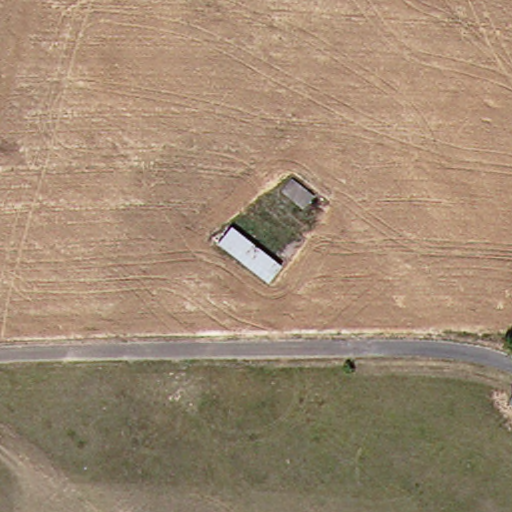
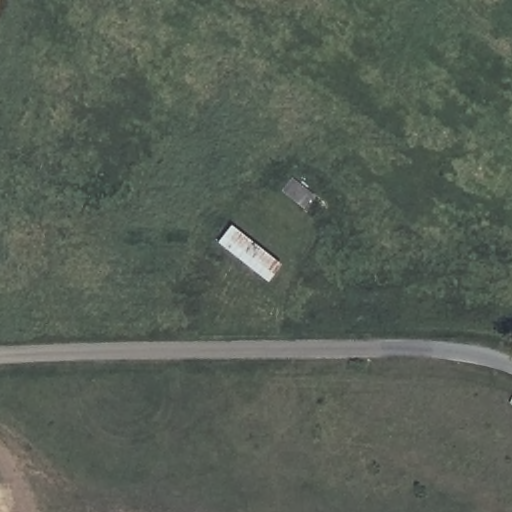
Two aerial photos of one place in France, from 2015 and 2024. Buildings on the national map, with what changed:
unchanged [(286,264),(273,279),(225,242),(237,226),(286,264)]

